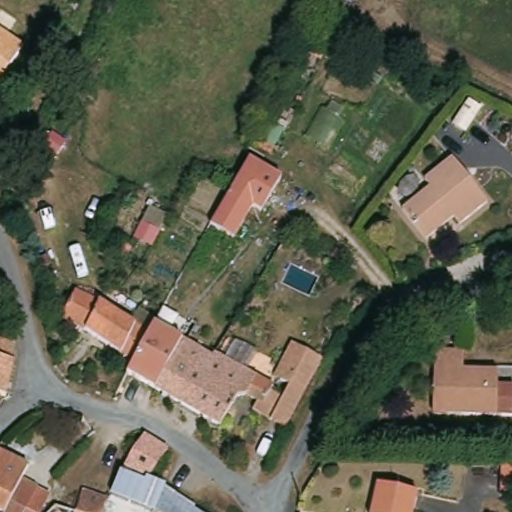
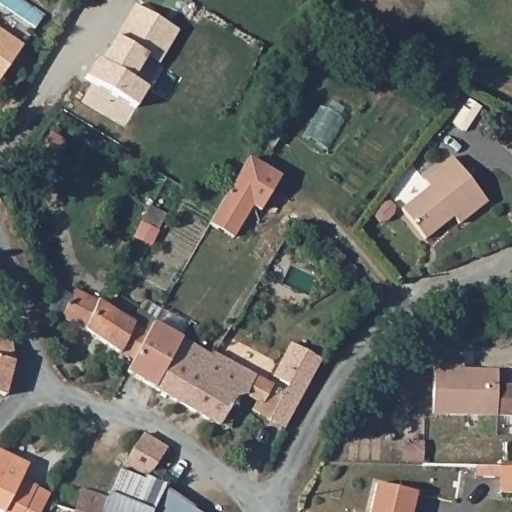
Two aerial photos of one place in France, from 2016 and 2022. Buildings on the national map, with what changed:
new [(96,59),(101,61),(134,4),(178,30),(159,63),(146,56),(133,80),(147,88),(136,107),(86,77),(96,59)]
unchanged [(0,73),(0,28),(22,43),(0,73)]
unchanged [(488,196),(459,218),(455,214),(427,234),(400,203),(429,183),(424,176),(454,153),(488,196)]
unchanged [(283,173),(264,208),(252,203),(238,231),(214,221),(250,156),(283,173)]
new [(150,207),(167,215),(152,244),(135,235),(150,207)]
unchanged [(94,302),(95,300),(145,331),(138,346),(130,360),(112,349),(106,346),(61,317),(64,312),(68,301),(73,290),(84,295),(94,302)]
unchanged [(174,350),(154,388),(154,389),(124,372),(130,360),(138,346),(145,331),(149,323),(179,340),(174,350)]
unchanged [(207,357),(209,353),(218,358),(220,360),(249,375),(252,376),(250,379),(255,382),(265,388),(267,391),(280,398),(285,401),(278,414),(271,410),(267,416),(264,420),(250,411),(255,402),(246,396),(234,398),(218,426),(154,389),(154,388),(174,350),(179,340),(207,357)]
unchanged [(271,410),(278,414),(285,401),(280,398),(289,381),(274,376),(290,341),(323,356),(288,426),(267,416),(271,410)]
unchanged [(0,344),(19,349),(16,362),(5,396),(0,395),(0,344)]
unchanged [(462,350),(462,367),(498,368),(496,414),(434,413),(434,349),(462,350)]
unchanged [(153,475),(149,480),(148,483),(124,469),(144,435),(145,435),(168,450),(153,475)]
unchanged [(0,452),(30,468),(25,481),(41,488),(54,493),(46,512),(3,512),(0,511),(0,452)]
unchanged [(150,512),(111,492),(109,492),(124,469),(148,483),(149,480),(166,490),(151,512),(150,512)]
unchanged [(504,499),(507,471),(512,471),(512,499),(504,499)]
unchanged [(149,480),(153,475),(191,502),(194,497),(217,512),(151,512),(166,490),(149,480)]
unchanged [(410,512),(370,512),(376,482),(415,490),(410,512)]
unchanged [(108,498),(106,502),(103,512),(83,512),(78,510),(83,493),(84,490),(108,498)]

